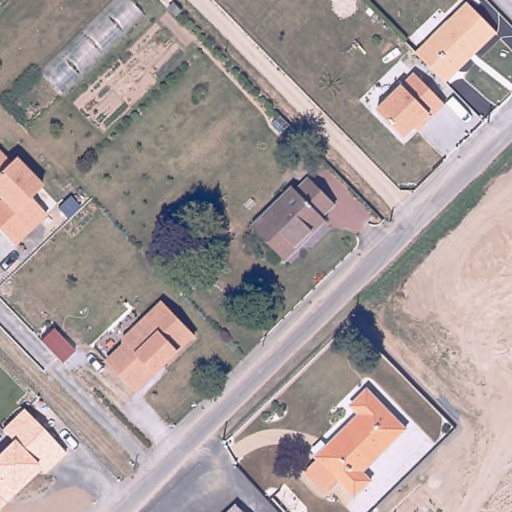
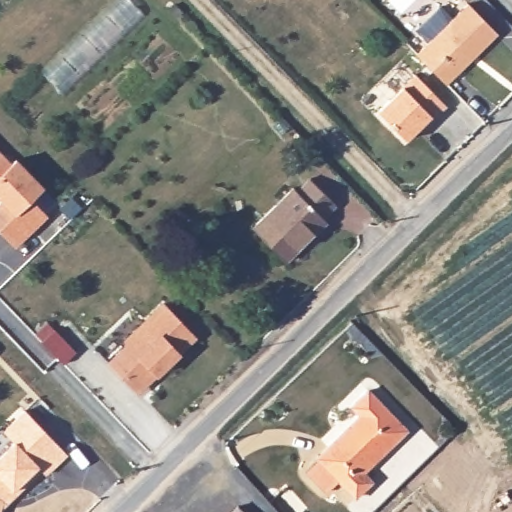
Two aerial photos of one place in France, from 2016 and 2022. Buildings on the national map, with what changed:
unchanged [(466,4),(495,33),(444,83),(415,53),(466,4)]
unchanged [(403,139),(375,111),(400,86),(415,74),(443,104),(428,116),(403,139)]
unchanged [(42,185),(30,197),(46,214),(14,246),(0,232),(0,150),(11,161),(15,158),(42,185)]
unchanged [(289,189),(292,192),(304,180),(330,207),(318,219),(322,223),(281,262),(248,228),(289,189)]
unchanged [(155,375),(137,394),(106,361),(123,344),(122,339),(162,300),(197,336),(179,353),(155,375)]
unchanged [(319,455),(318,454),(361,411),(353,402),(369,386),(409,426),(366,468),(375,478),(358,495),(339,476),(326,488),(306,467),(319,455)]
unchanged [(1,505),(0,510),(0,452),(12,440),(2,430),(23,409),(66,453),(45,475),(38,468),(12,493),(1,505)]
unchanged [(245,509),(248,512),(242,512),(245,509)]

